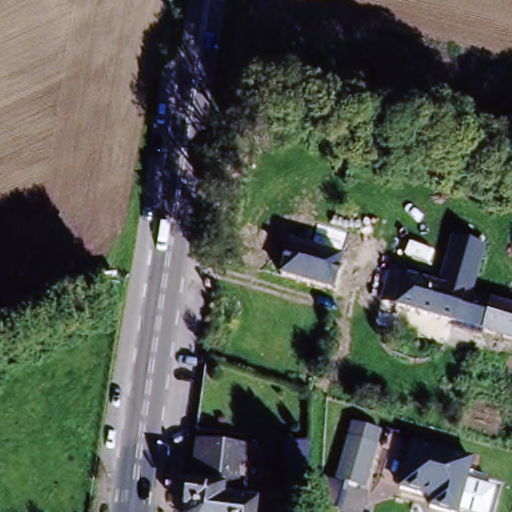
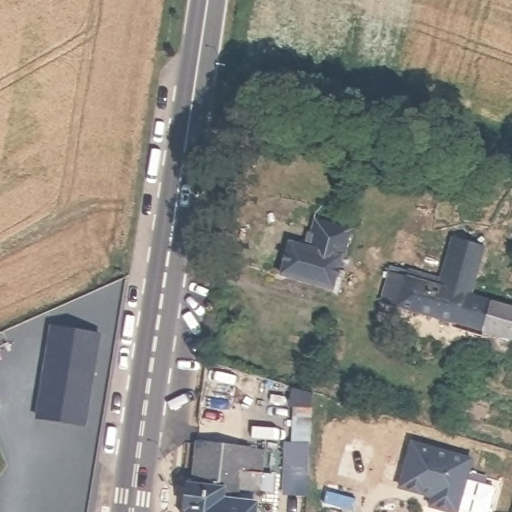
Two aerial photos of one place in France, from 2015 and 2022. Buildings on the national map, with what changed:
unchanged [(293,237),(309,245),(313,218),(354,231),(332,293),(277,275),(293,237)]
unchanged [(451,237),(484,248),(475,297),(481,301),(474,332),(473,335),(457,331),(459,323),(466,290),(447,285),(438,283),(451,237)]
unchanged [(459,323),(385,304),(393,271),(408,275),(466,290),(459,323)]
unchanged [(481,301),(512,308),(512,340),(474,332),(481,301)]
new [(85,427),(37,419),(52,328),(99,336),(85,427)]
unchanged [(367,485),(339,476),(352,435),(380,444),(367,485)]
unchanged [(305,507),(278,506),(280,439),(306,440),(305,507)]
unchanged [(461,512),(454,512),(435,504),(438,497),(407,487),(421,443),(478,461),(461,512)]
unchanged [(183,510),(178,503),(182,484),(185,462),(189,444),(253,453),(247,502),(246,512),(183,512),(183,510)]

